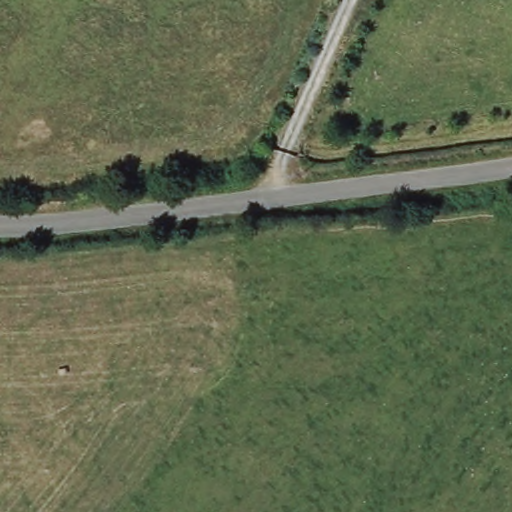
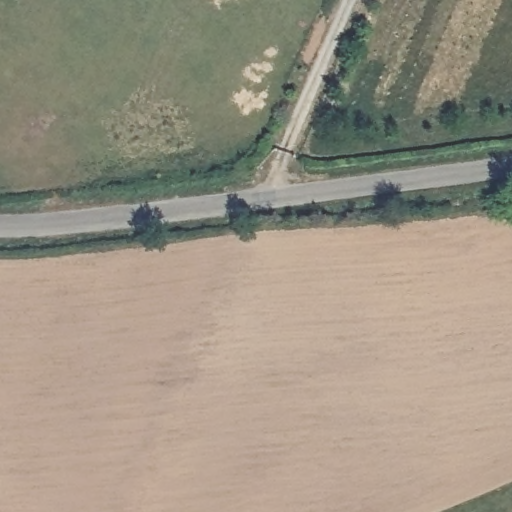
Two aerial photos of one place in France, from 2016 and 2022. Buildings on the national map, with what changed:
[]

